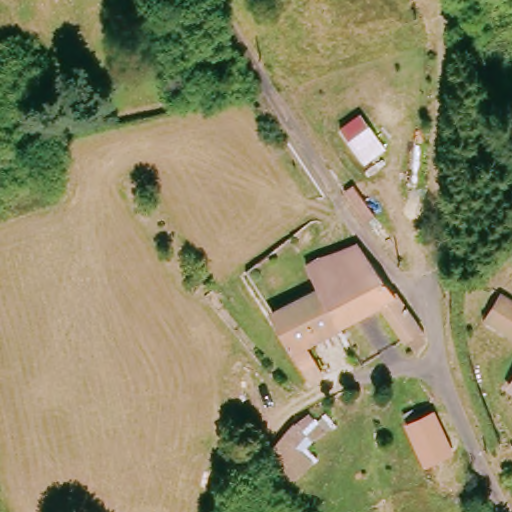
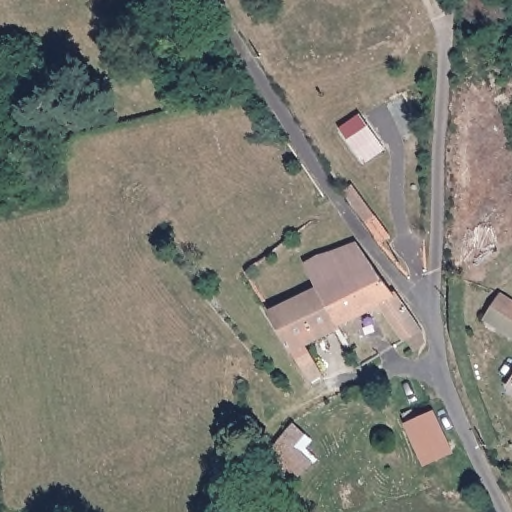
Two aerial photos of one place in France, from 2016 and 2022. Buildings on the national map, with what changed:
unchanged [(338,128),(359,113),(384,147),(363,164),(338,128)]
unchanged [(353,184),(375,216),(365,224),(342,193),(353,184)]
unchanged [(318,255),(348,241),(365,265),(312,292),(301,271),(318,255)]
unchanged [(382,291),(387,288),(414,326),(396,340),(370,305),(329,325),(312,292),(365,265),(382,291)]
unchanged [(302,380),(283,347),(265,316),(312,292),(329,325),(297,340),(316,373),(302,380)]
unchanged [(491,328),(503,301),(512,306),(512,337),(491,328)]
unchanged [(512,377),(512,395),(504,389),(512,377)]
unchanged [(253,463),(303,414),(308,421),(324,412),(336,428),(318,435),(302,449),(315,461),(284,486),(253,463)]
unchanged [(443,453),(419,466),(400,425),(424,413),(443,453)]

